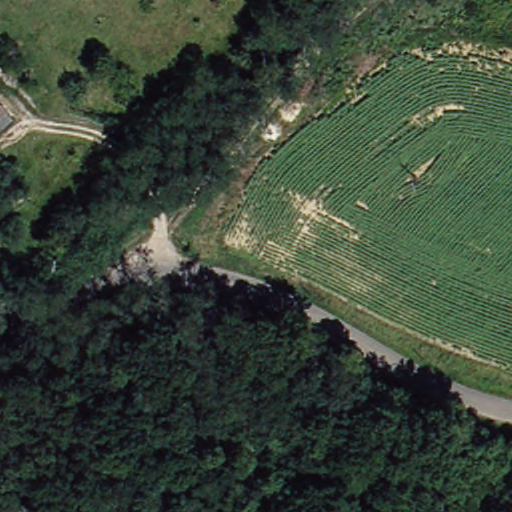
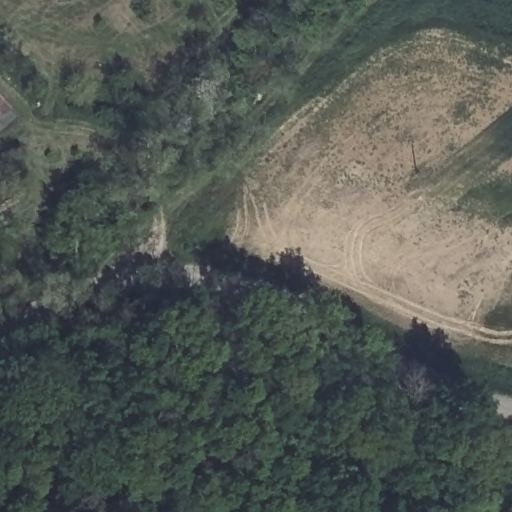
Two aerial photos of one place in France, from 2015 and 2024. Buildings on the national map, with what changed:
unchanged [(0,92),(10,106),(0,114),(0,92)]

